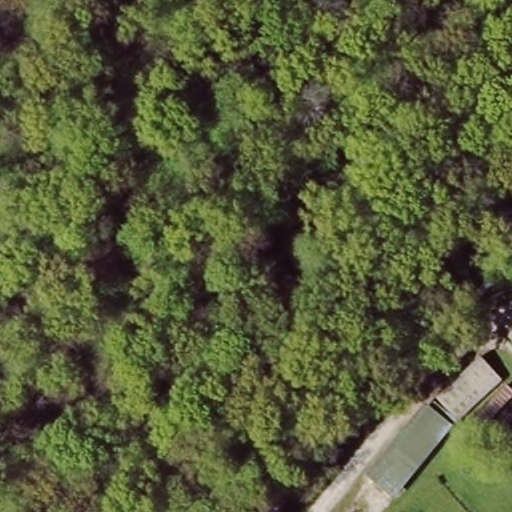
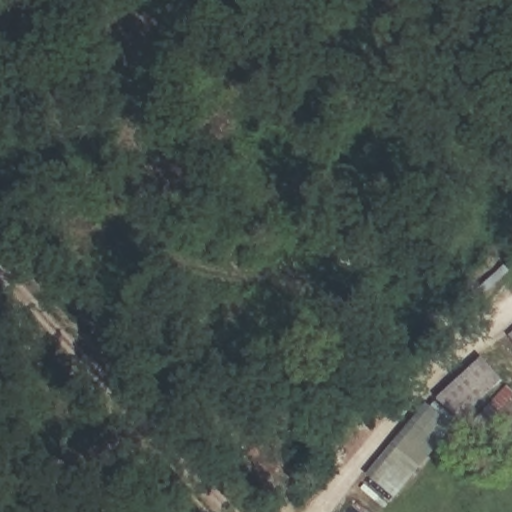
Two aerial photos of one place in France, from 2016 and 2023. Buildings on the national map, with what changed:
unchanged [(512,335),(508,330),(512,327),(512,335)]
unchanged [(512,376),(512,382),(471,416),(451,390),(497,354),(512,376)]
unchanged [(432,410),(451,390),(471,416),(454,428),(398,495),(374,476),(432,410)]

